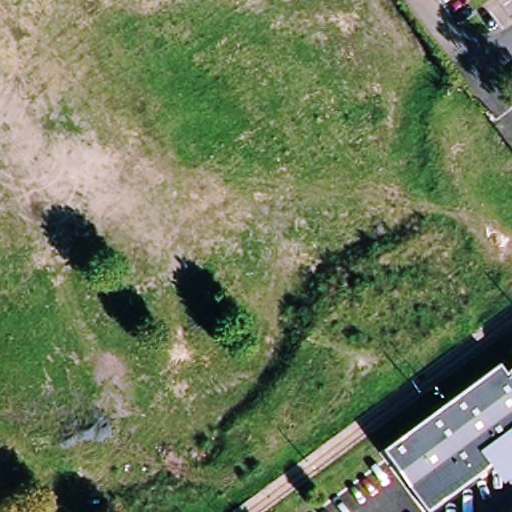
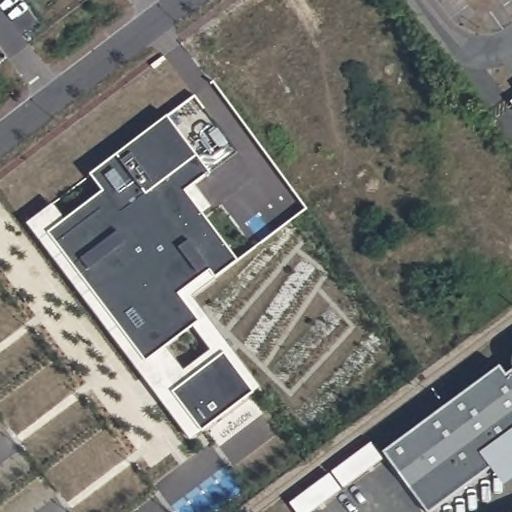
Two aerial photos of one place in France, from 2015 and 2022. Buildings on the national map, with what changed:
new [(103,193),(90,176),(168,117),(210,174),(186,192),(238,262),(215,280),(210,273),(180,296),(200,323),(146,364),(48,234),(103,193)]
new [(66,221),(48,234),(146,364),(167,348),(183,371),(210,351),(193,328),(200,323),(180,296),(210,273),(215,280),(192,298),(261,388),(255,392),(225,353),(173,392),(202,432),(190,442),(26,225),(53,204),(66,221)]
new [(173,392),(225,353),(255,392),(202,432),(173,392)]
unchanged [(492,469),(431,512),(427,512),(385,452),(500,367),(507,376),(512,373),(512,482),(505,487),(492,469)]

